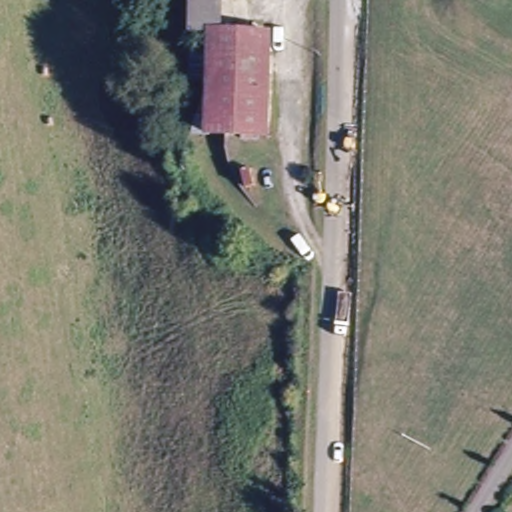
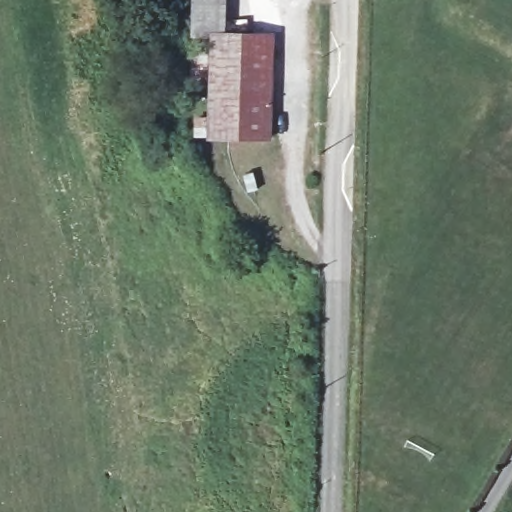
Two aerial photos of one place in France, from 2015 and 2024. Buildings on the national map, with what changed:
unchanged [(215,36),(188,36),(189,0),(229,0),(227,36),(215,36)]
unchanged [(273,138),(211,135),(215,36),(227,36),(277,36),(273,138)]

